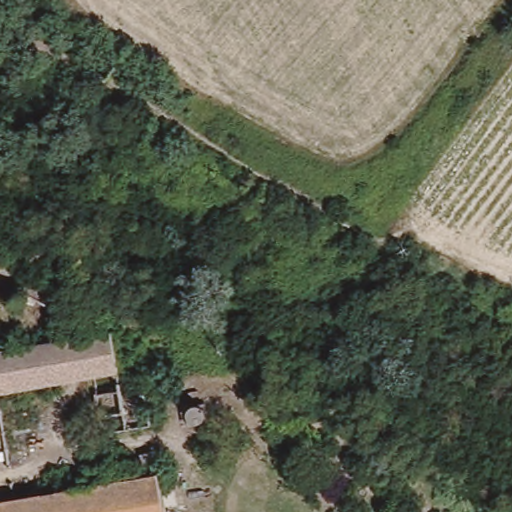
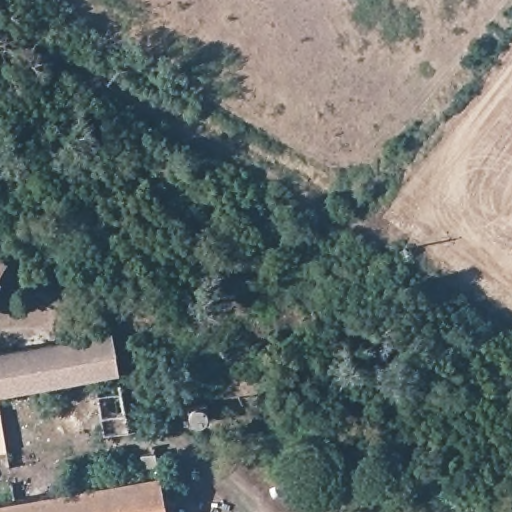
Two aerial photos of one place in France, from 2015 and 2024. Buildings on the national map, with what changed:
unchanged [(113,373),(0,392),(0,353),(109,334),(113,373)]
unchanged [(221,445),(176,446),(176,411),(220,410),(221,445)]
unchanged [(159,452),(161,473),(167,512),(0,512),(0,502),(119,482),(116,462),(159,452)]

